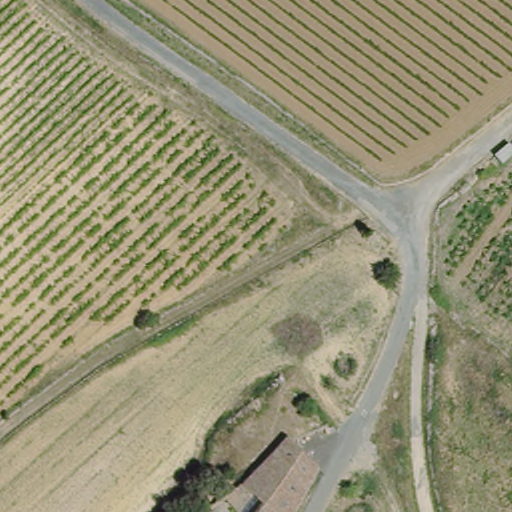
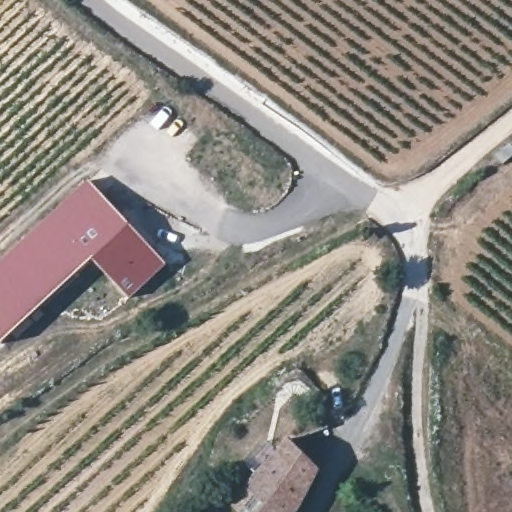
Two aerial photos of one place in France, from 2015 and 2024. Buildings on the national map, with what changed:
new [(132,228),(96,263),(7,351),(0,344),(0,274),(90,185),(132,228)]
new [(132,228),(169,266),(134,301),(96,263),(132,228)]
unchanged [(262,512),(277,484),(264,463),(284,442),(307,422),(332,455),(302,512),(262,512)]

